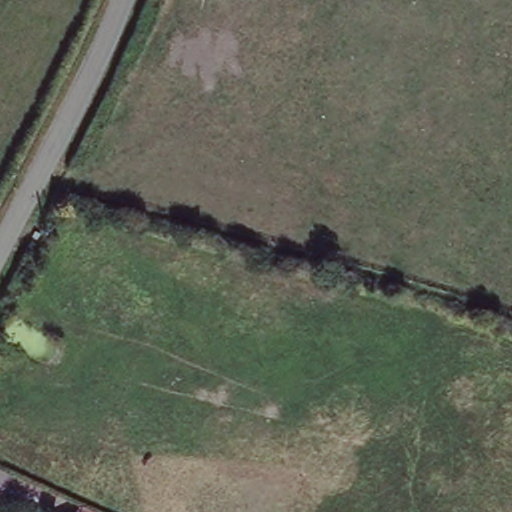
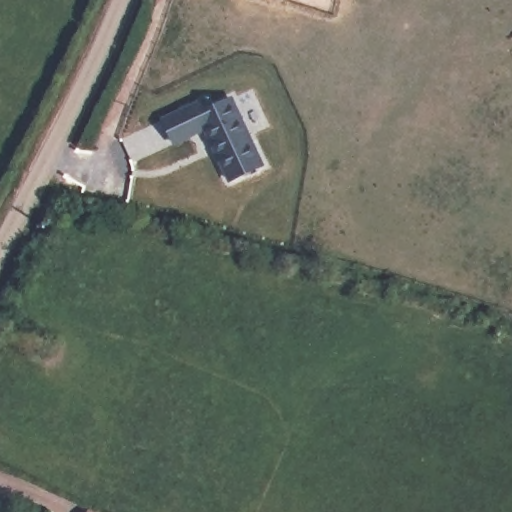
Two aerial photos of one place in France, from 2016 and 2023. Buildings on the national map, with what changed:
new [(212,111),(233,101),(262,169),(231,181),(209,129),(200,133),(177,143),(167,120),(190,110),(208,103),(212,111)]
new [(94,512),(80,512),(82,506),(94,512)]

